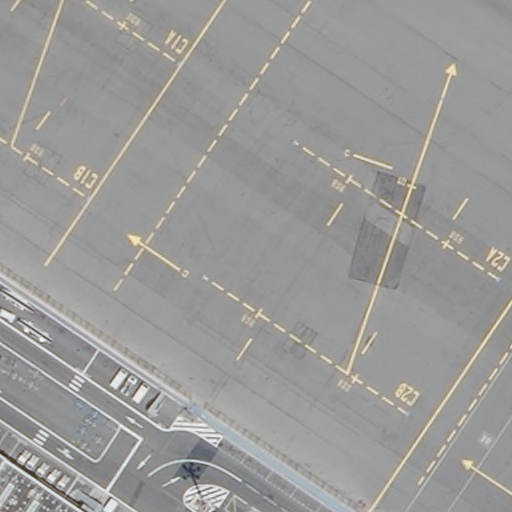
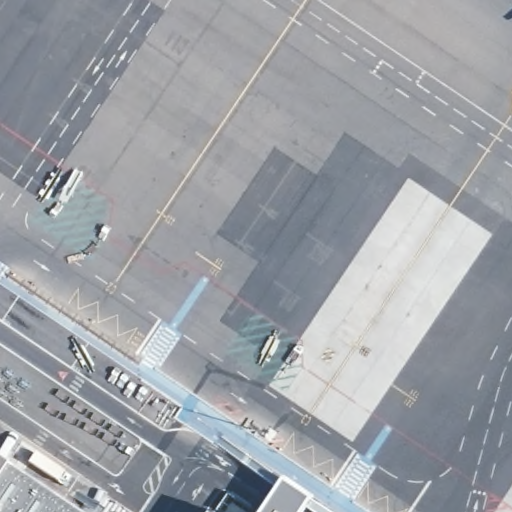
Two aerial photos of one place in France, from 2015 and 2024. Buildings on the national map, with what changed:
unchanged [(73,512),(0,512),(0,463),(73,512)]
new [(313,497),(303,512),(261,512),(285,478),(313,497)]

